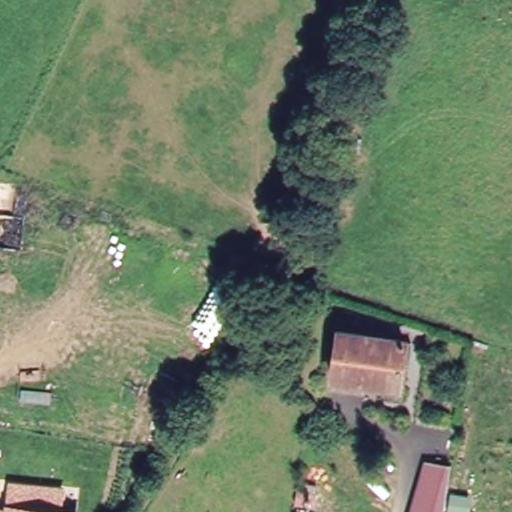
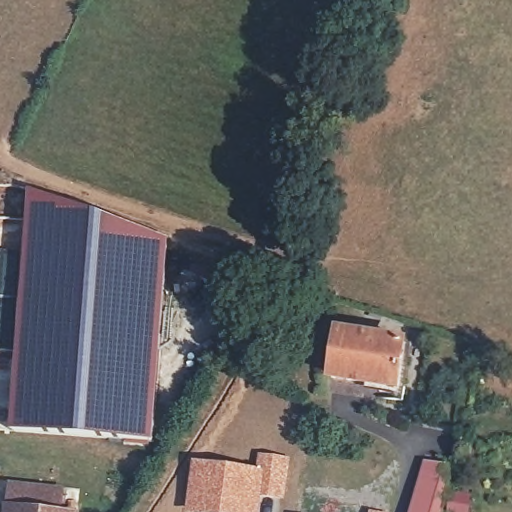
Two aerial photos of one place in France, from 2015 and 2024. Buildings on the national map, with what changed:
new [(15,349),(28,190),(60,199),(94,211),(169,237),(160,375),(152,442),(10,430),(15,349)]
unchanged [(395,378),(405,380),(402,395),(380,390),(381,378),(330,368),(337,328),(401,339),(395,378)]
new [(255,467),(257,451),(290,455),(283,500),(262,498),(259,512),(184,512),(191,459),(255,467)]
unchanged [(443,512),(409,512),(423,461),(450,465),(443,512)]
unchanged [(65,512),(0,512),(0,509),(15,511),(18,490),(67,497),(65,512)]

